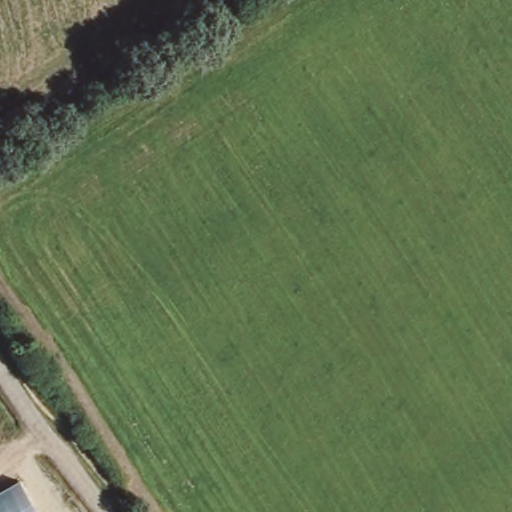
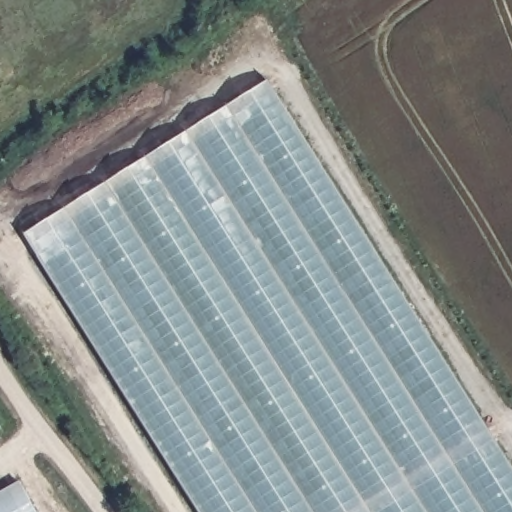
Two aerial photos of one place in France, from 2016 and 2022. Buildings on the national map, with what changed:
new [(265,81),(512,471),(512,512),(197,512),(22,234),(265,81)]
unchanged [(35,512),(0,512),(0,489),(16,481),(35,512)]

